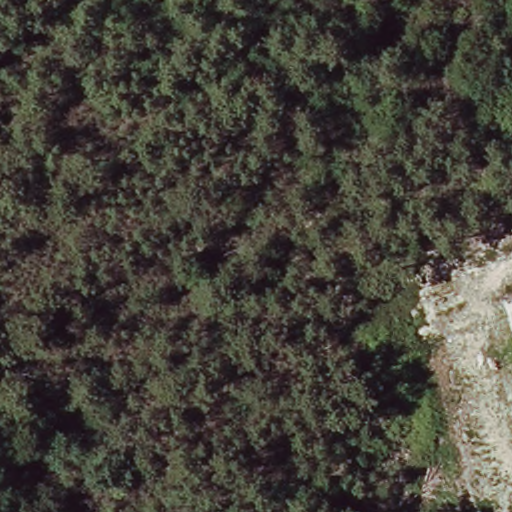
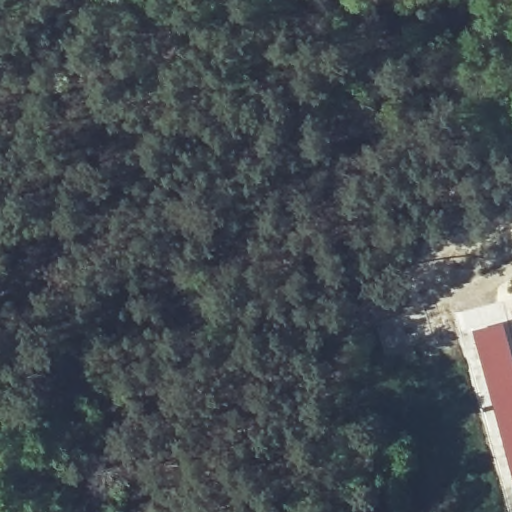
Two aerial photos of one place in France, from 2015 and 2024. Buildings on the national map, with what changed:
new [(474,332),(504,324),(512,355),(512,472),(474,332)]

